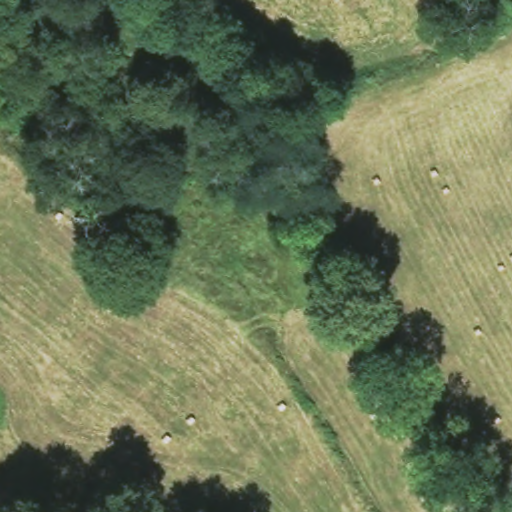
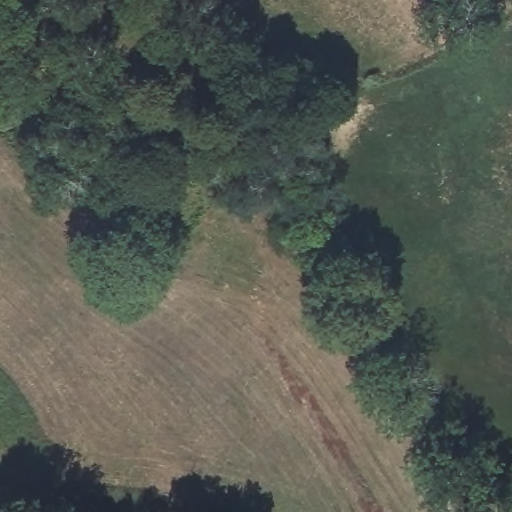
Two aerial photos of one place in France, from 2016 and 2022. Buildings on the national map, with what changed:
[]

